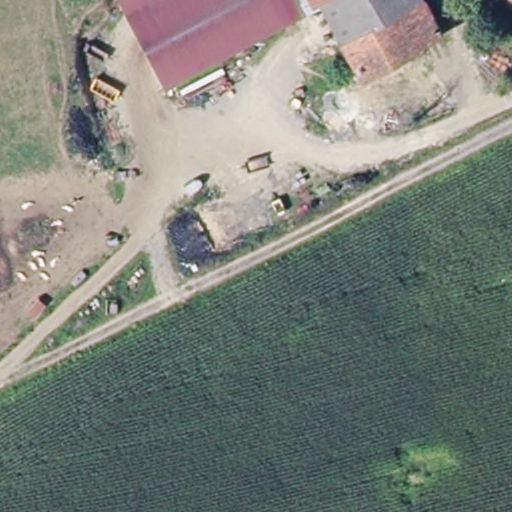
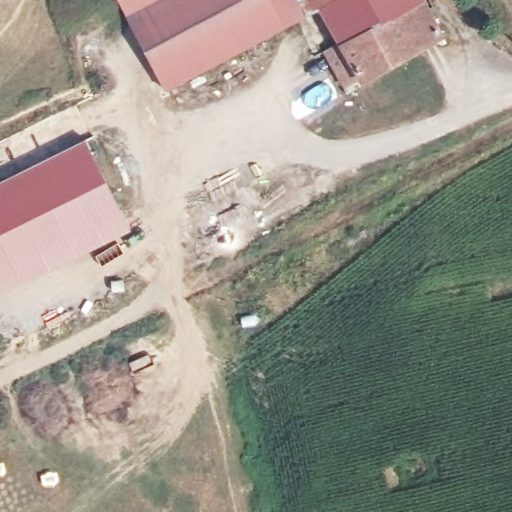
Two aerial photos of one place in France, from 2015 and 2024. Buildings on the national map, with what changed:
unchanged [(314,15),(301,21),(240,50),(157,90),(114,0),(343,0),(314,15)]
unchanged [(431,53),(357,89),(314,15),(343,0),(407,0),(431,53)]
demolished [(457,110),(461,116),(449,122),(443,112),(440,105),(451,99),(457,110)]
new [(131,230),(1,295),(0,295),(0,180),(85,139),(131,230)]

